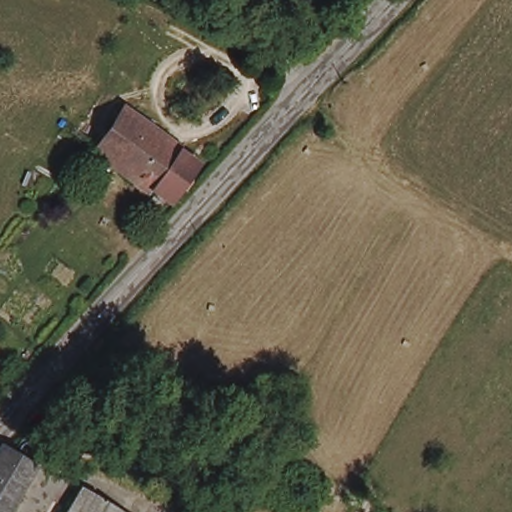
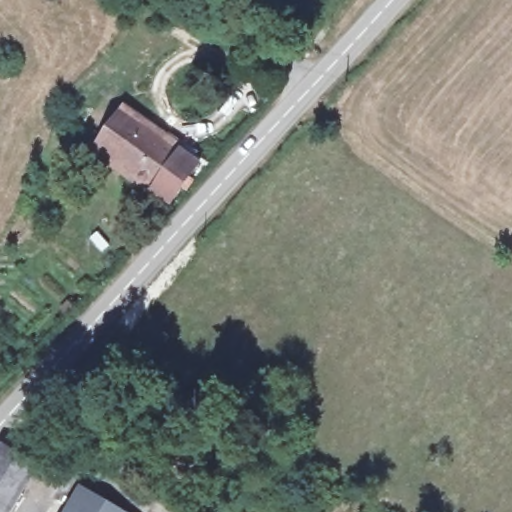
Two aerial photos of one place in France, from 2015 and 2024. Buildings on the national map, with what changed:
unchanged [(198,161),(168,201),(94,147),(121,109),(143,125),(147,125),(198,161)]
unchanged [(6,512),(0,512),(0,452),(33,470),(6,512)]
unchanged [(68,507),(76,491),(113,512),(66,512),(68,507)]

